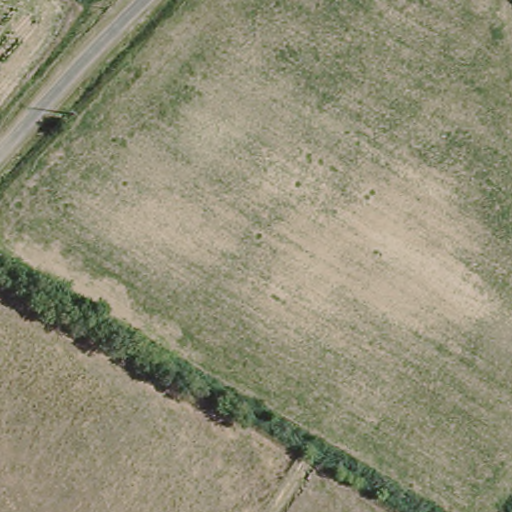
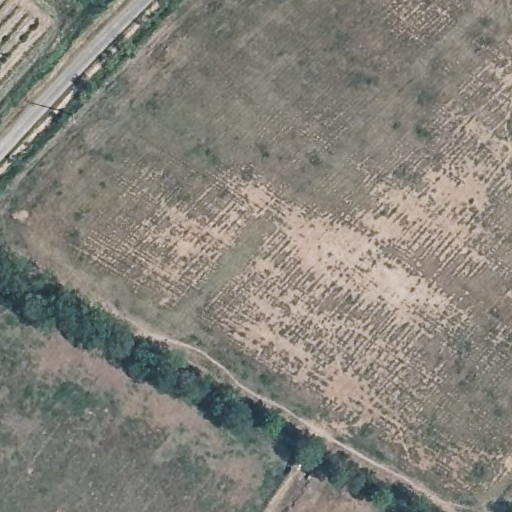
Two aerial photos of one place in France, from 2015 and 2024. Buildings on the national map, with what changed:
[]

